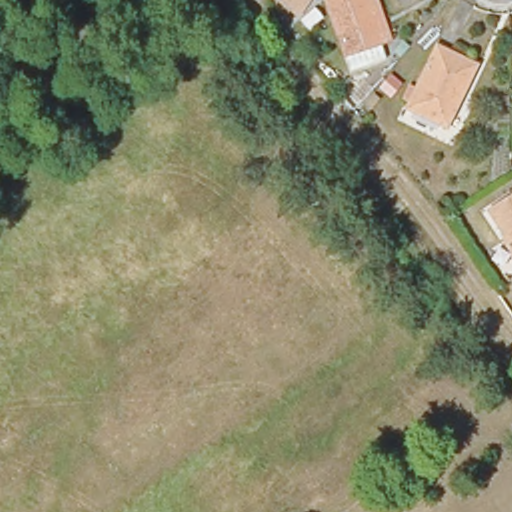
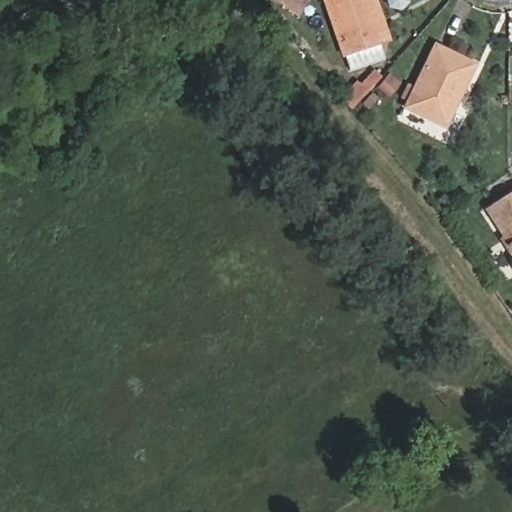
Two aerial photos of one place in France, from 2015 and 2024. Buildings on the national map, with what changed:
unchanged [(288,0),(292,0),(290,2),(288,0)]
unchanged [(371,0),(372,0),(383,0),(397,38),(387,42),(378,45),(383,61),(356,70),(351,54),(332,0),(371,0)]
unchanged [(412,104),(441,43),(478,60),(450,123),(412,104)]
unchanged [(508,192),(512,198),(512,265),(510,267),(474,214),(508,192)]

